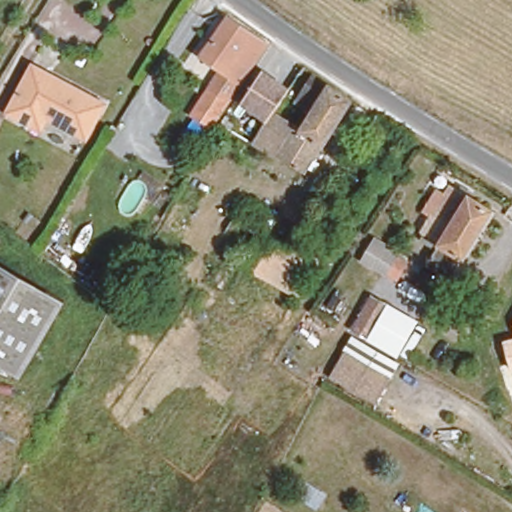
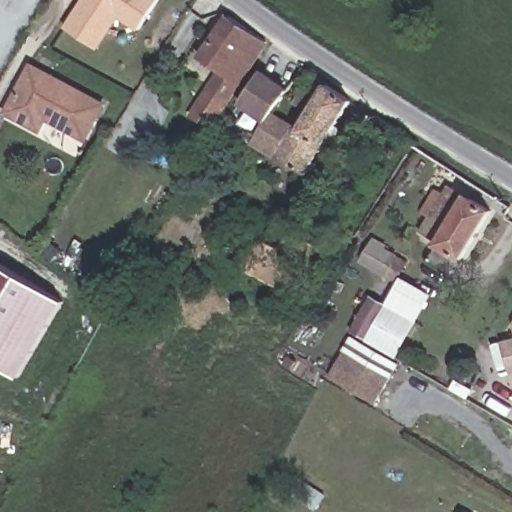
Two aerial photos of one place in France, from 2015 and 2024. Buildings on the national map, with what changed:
new [(153,0),(136,27),(115,14),(94,48),(63,29),(81,0),(153,0)]
unchanged [(264,41),(239,81),(220,70),(200,58),(226,16),(264,41)]
unchanged [(272,45),(219,125),(195,110),(220,70),(239,81),(264,41),(272,45)]
unchanged [(240,106),(275,50),(305,70),(287,95),(283,102),(274,114),(267,125),(240,106)]
unchanged [(43,120),(36,131),(4,115),(29,69),(101,107),(82,140),(43,120)]
unchanged [(294,110),(299,103),(287,95),(305,70),(356,105),(333,138),(318,127),(308,120),(294,110)]
unchanged [(267,125),(274,114),(299,132),(308,120),(318,127),(333,138),(306,177),(277,158),(275,162),(251,146),(267,125)]
unchanged [(466,253),(463,251),(453,267),(428,251),(438,236),(419,225),(449,177),(495,204),(466,253)]
unchanged [(235,263),(216,250),(233,223),(254,236),(273,248),(281,255),(292,237),(328,260),(299,306),(259,278),(254,275),(235,263)]
new [(370,239),(401,256),(390,275),(359,256),(370,239)]
unchanged [(20,371),(0,360),(0,261),(60,299),(20,371)]
unchanged [(389,306),(369,345),(351,335),(372,296),(389,306)]
unchanged [(349,338),(393,363),(369,403),(328,380),(349,338)]
unchanged [(504,340),(512,338),(512,372),(504,340)]

